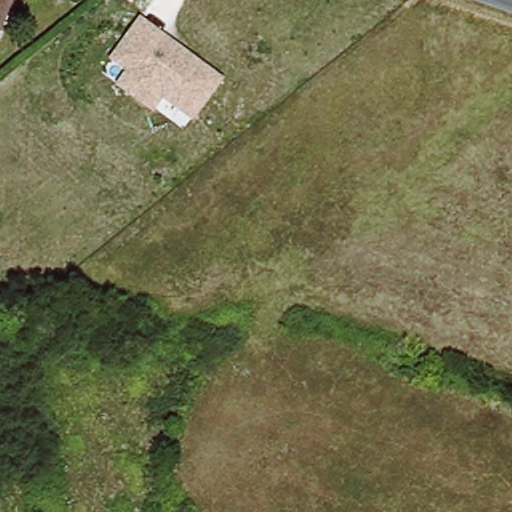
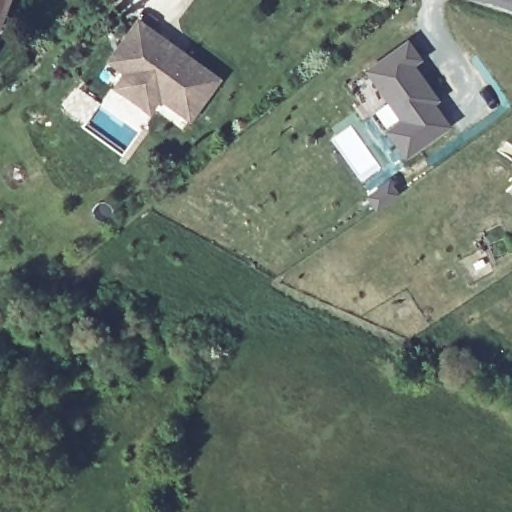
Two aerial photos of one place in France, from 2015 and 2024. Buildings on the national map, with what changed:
unchanged [(0,28),(0,0),(14,0),(3,29),(0,28)]
unchanged [(136,16),(221,76),(192,120),(161,99),(150,113),(111,86),(122,71),(105,59),(136,16)]
new [(426,59),(417,64),(426,78),(442,100),(438,103),(454,126),(411,155),(359,79),(414,41),(426,59)]

